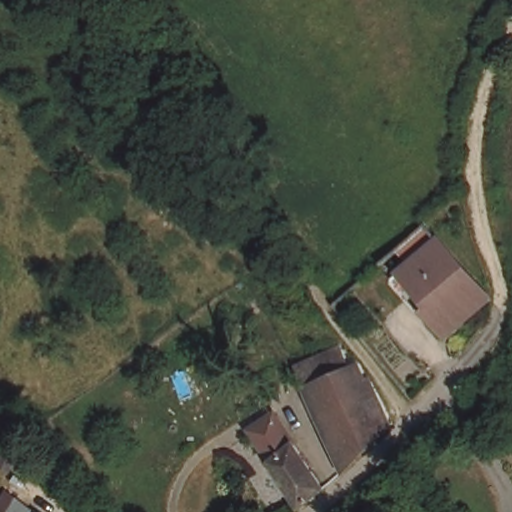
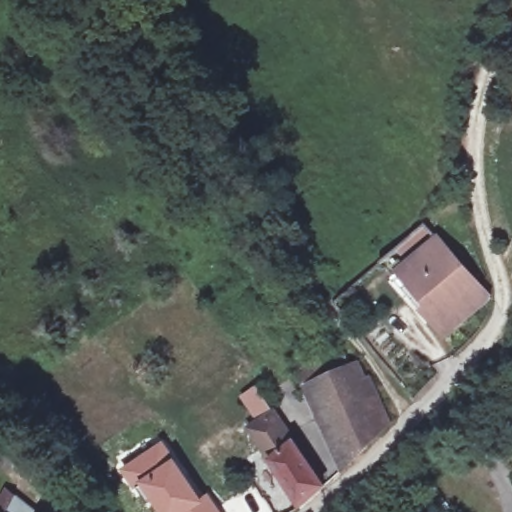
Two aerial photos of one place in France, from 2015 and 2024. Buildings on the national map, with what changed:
unchanged [(430,228),(434,232),(440,239),(412,263),(402,252),(430,228)]
unchanged [(443,244),(496,303),(450,345),(398,283),(443,244)]
unchanged [(340,352),(350,372),(357,369),(373,392),(392,430),(384,437),(349,470),(320,422),(307,391),(311,390),(302,370),(340,352)]
unchanged [(275,418),(295,448),(324,492),(318,497),(302,511),(272,465),(250,433),(275,418)]
new [(162,439),(202,496),(208,492),(221,512),(158,512),(140,485),(134,490),(120,469),(162,439)]
unchanged [(7,489),(37,512),(0,512),(0,501),(7,489)]

